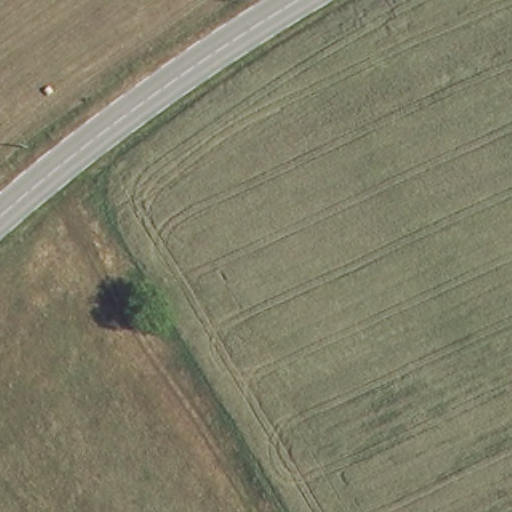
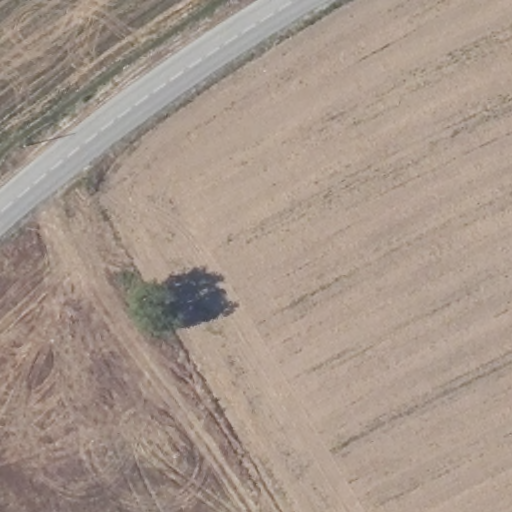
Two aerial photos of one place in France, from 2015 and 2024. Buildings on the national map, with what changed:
[]

